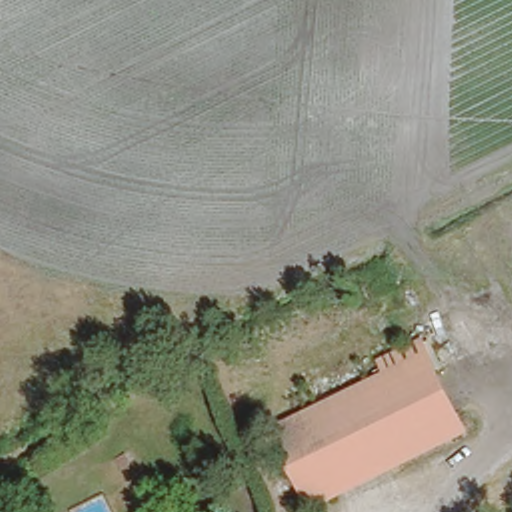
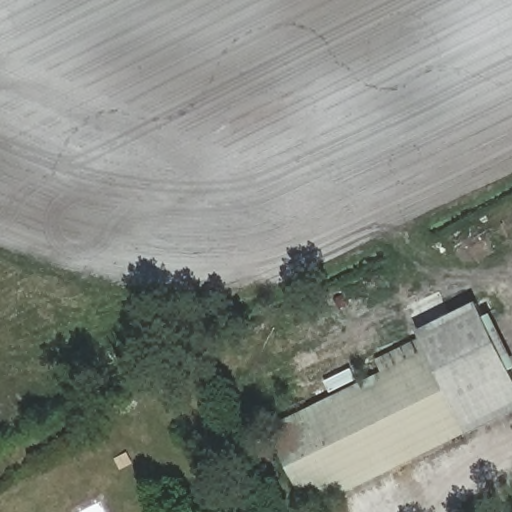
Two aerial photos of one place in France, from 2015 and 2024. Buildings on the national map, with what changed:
new [(430,353),(382,375),(375,360),(420,331),(479,303),(486,317),(493,313),(512,354),(512,412),(468,430),(430,353)]
unchanged [(430,353),(468,430),(332,492),(298,416),(430,353)]
unchanged [(300,507),(264,432),(298,416),(332,492),(300,507)]

